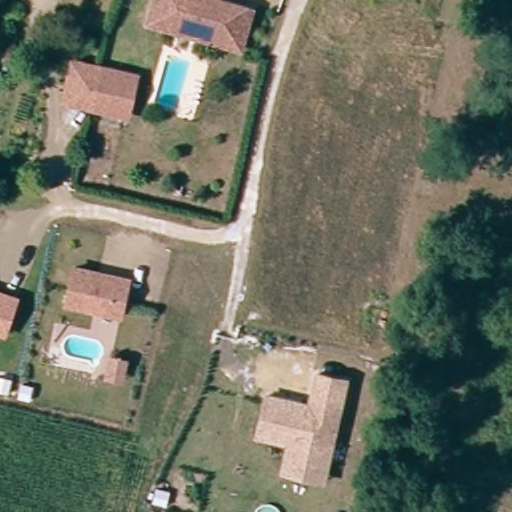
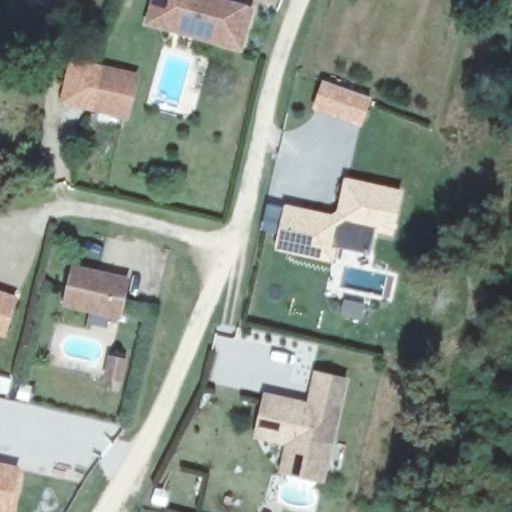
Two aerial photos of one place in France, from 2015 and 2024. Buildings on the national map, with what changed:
unchanged [(159,27),(164,10),(167,0),(227,0),(230,6),(263,16),(254,44),(251,55),(211,42),(181,34),(159,27)]
unchanged [(137,120),(105,114),(86,111),(74,109),(81,69),(93,71),(112,75),(144,80),(137,120)]
new [(372,97),(363,126),(313,109),(323,79),(372,97)]
new [(393,235),(346,224),(341,227),(334,260),(276,247),(285,203),(333,213),(337,210),(345,177),(403,190),(393,235)]
unchanged [(121,316),(67,307),(73,270),(127,278),(121,316)]
unchanged [(0,333),(0,288),(19,295),(5,335),(0,333)]
unchanged [(131,370),(116,367),(119,347),(134,350),(131,370)]
unchanged [(308,402),(315,371),(350,377),(327,483),(278,472),(284,446),(252,438),(262,393),(308,402)]
new [(15,512),(0,512),(0,460),(24,466),(15,512)]

